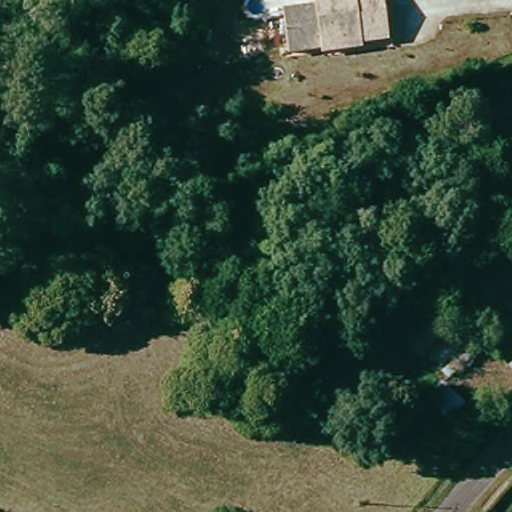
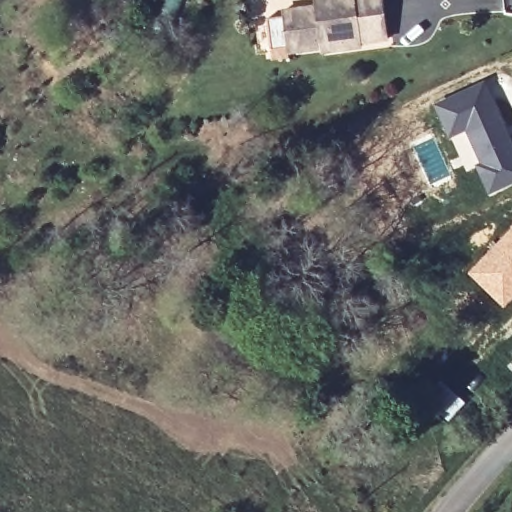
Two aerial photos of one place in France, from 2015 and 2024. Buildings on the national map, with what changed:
unchanged [(291,54),(285,13),(317,8),(316,0),(385,0),(391,39),(364,43),(364,47),(345,49),(325,51),(325,49),(291,54)]
new [(468,175),(440,108),(486,85),(512,141),(512,185),(493,194),(482,169),(468,175)]
new [(512,300),(504,308),(467,273),(512,226),(512,300)]
unchanged [(440,313),(475,354),(449,380),(408,341),(440,313)]
unchanged [(512,366),(512,375),(507,370),(512,366)]

